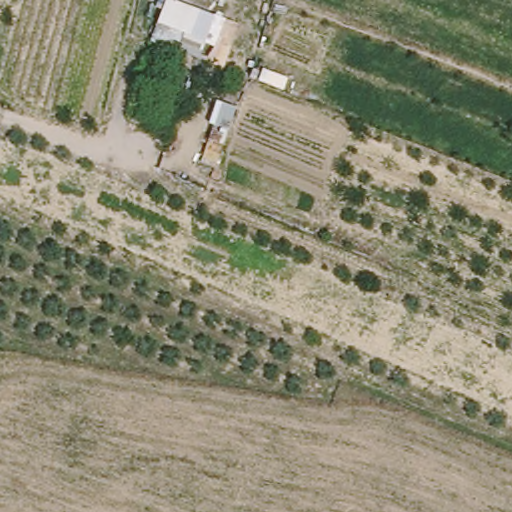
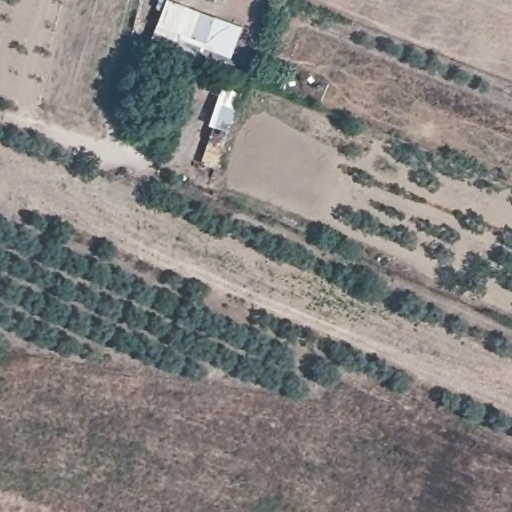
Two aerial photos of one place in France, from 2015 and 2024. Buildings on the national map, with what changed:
unchanged [(164,3),(213,21),(204,44),(155,26),(164,3)]
unchanged [(189,116),(174,146),(133,128),(145,96),(189,116)]
unchanged [(230,133),(220,171),(205,165),(216,128),(230,133)]

